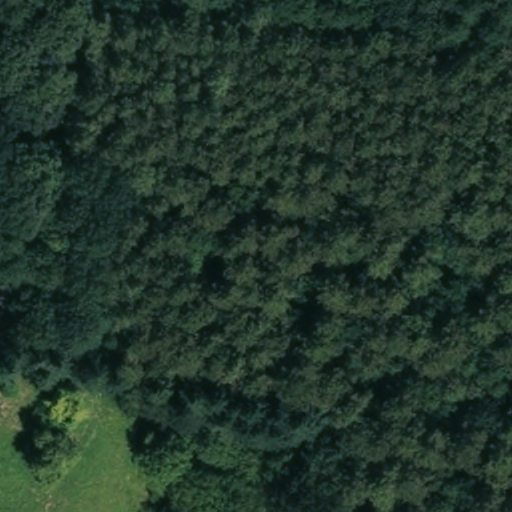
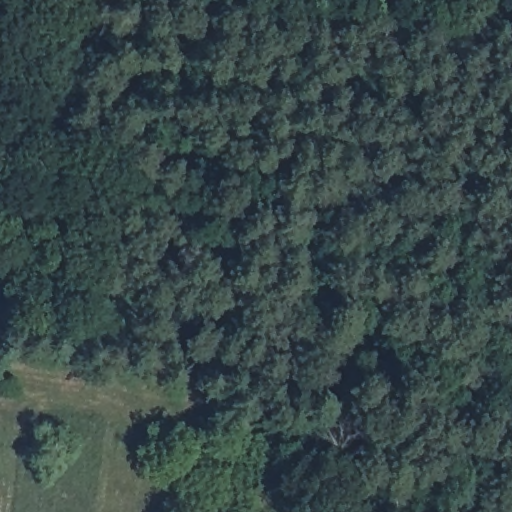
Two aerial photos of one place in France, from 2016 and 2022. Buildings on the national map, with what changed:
[]

